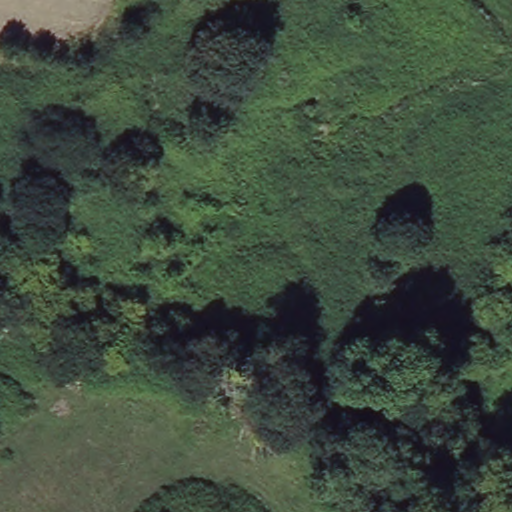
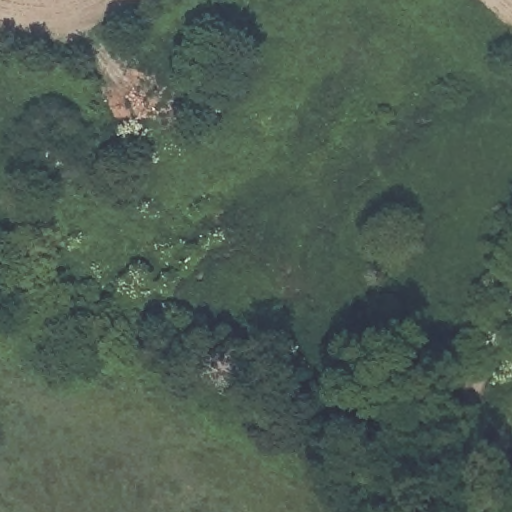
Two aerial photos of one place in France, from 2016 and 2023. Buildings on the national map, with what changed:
unchanged [(512,493),(512,512),(487,512),(494,487),(512,493)]

